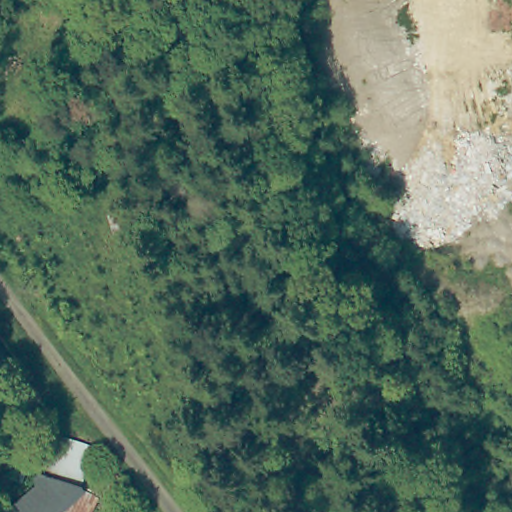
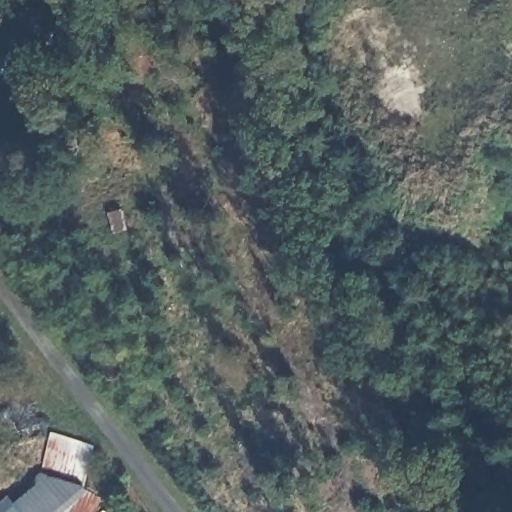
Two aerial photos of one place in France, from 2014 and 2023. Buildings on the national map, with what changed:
unchanged [(106,219),(114,242),(96,249),(89,226),(106,219)]
unchanged [(45,454),(49,438),(92,446),(90,460),(85,482),(41,472),(45,454)]
unchanged [(82,491),(58,512),(22,512),(15,507),(39,487),(41,472),(85,482),(82,491)]
unchanged [(15,507),(22,512),(9,512),(15,507)]

